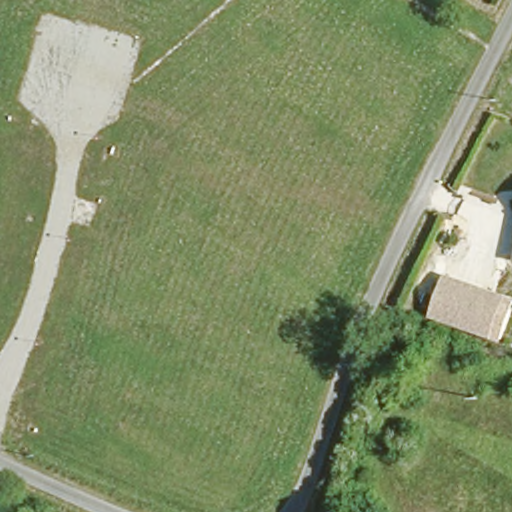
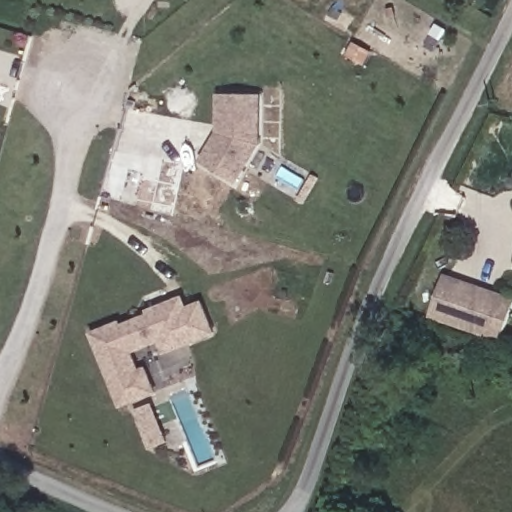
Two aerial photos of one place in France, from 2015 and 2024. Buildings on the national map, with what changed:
new [(237,183),(200,160),(216,132),(217,93),(261,92),(261,143),(237,183)]
unchanged [(493,341),(429,318),(445,277),(506,298),(493,341)]
new [(157,391),(120,406),(90,331),(121,319),(123,322),(148,313),(147,309),(183,295),(187,306),(203,299),(216,334),(165,353),(160,342),(134,351),(140,368),(148,366),(157,391)]

